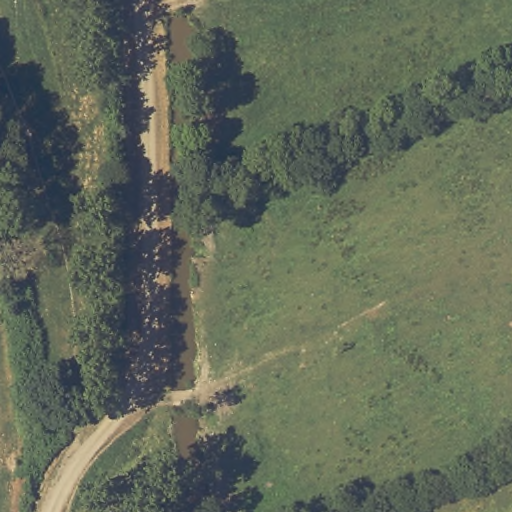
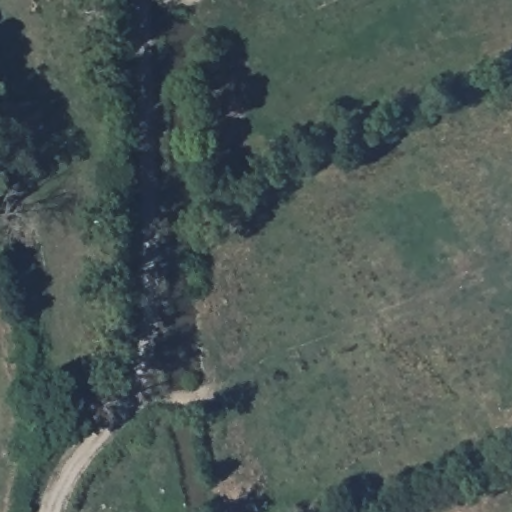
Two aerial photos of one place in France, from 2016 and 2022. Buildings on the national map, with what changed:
[]

